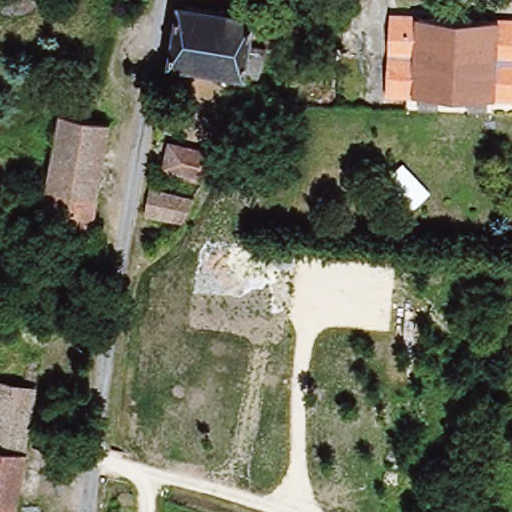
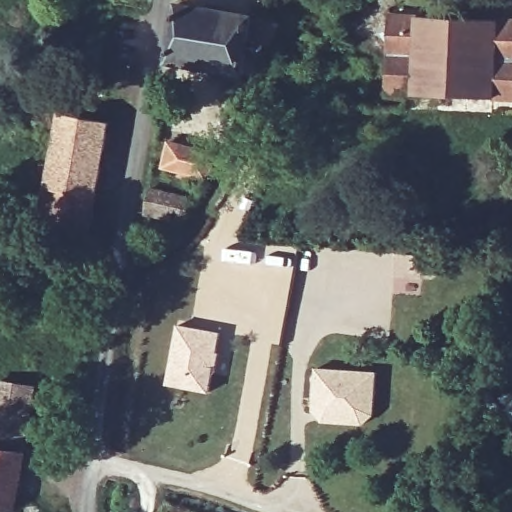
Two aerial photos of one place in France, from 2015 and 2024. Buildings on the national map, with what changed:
unchanged [(253,17),(251,22),(290,27),(288,39),(280,37),(275,53),(266,52),(260,82),(172,66),(181,5),(253,17)]
unchanged [(512,107),(381,90),(392,13),(512,29),(512,107)]
unchanged [(87,225),(37,215),(59,113),(109,123),(87,225)]
unchanged [(201,176),(165,167),(171,143),(216,151),(201,176)]
unchanged [(144,240),(150,224),(155,190),(199,195),(180,229),(170,245),(144,240)]
new [(175,324),(221,332),(209,393),(164,385),(175,324)]
new [(376,373),(374,415),(362,424),(323,421),(313,411),(317,369),(376,373)]
unchanged [(36,388),(14,509),(0,507),(0,381),(11,383),(36,388)]

